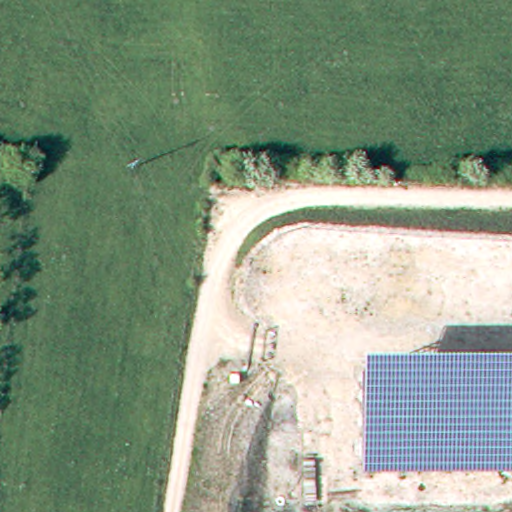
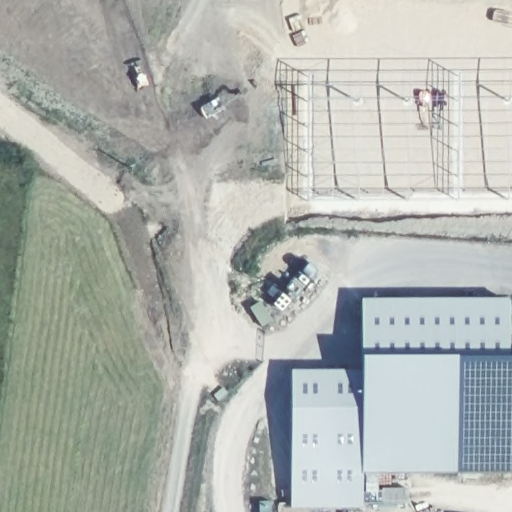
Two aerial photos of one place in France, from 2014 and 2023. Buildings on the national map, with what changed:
new [(507,300),(508,359),(364,360),(362,300),(507,300)]
unchanged [(361,360),(512,359),(512,472),(362,473),(361,360)]
new [(361,372),(362,473),(362,508),(291,506),(291,371),(361,372)]

